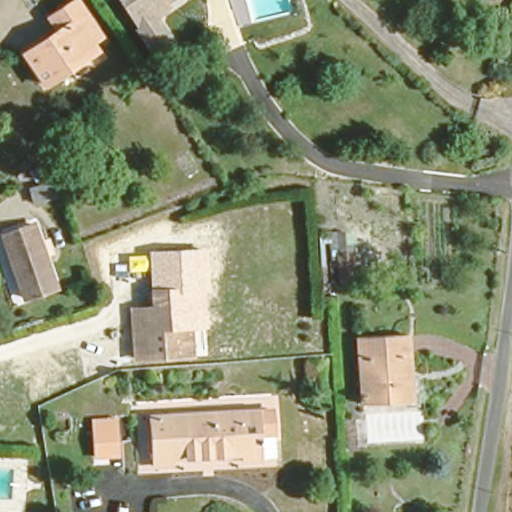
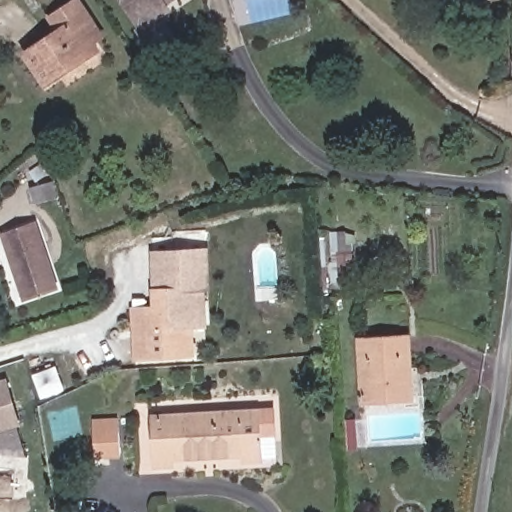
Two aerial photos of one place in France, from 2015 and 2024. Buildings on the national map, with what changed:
unchanged [(25,52),(54,27),(45,17),(65,0),(79,0),(90,12),(106,30),(95,40),(98,44),(52,83),(25,52)]
unchanged [(169,0),(160,7),(164,12),(139,31),(113,0),(169,0)]
unchanged [(42,229),(57,288),(23,295),(9,236),(42,229)]
unchanged [(207,248),(210,290),(206,291),(207,327),(189,327),(188,287),(179,287),(179,291),(174,291),(174,306),(152,306),(151,288),(150,251),(207,248)]
unchanged [(354,279),(340,279),(339,248),(353,248),(354,279)]
unchanged [(126,326),(125,305),(152,306),(174,306),(174,291),(179,291),(179,287),(188,287),(189,327),(189,354),(142,354),(126,354),(126,326)]
unchanged [(403,399),(362,399),(360,332),(402,332),(403,399)]
new [(0,431),(0,379),(4,377),(19,425),(0,431)]
unchanged [(157,414),(264,408),(265,457),(247,458),(247,448),(175,452),(176,464),(159,465),(157,414)]

